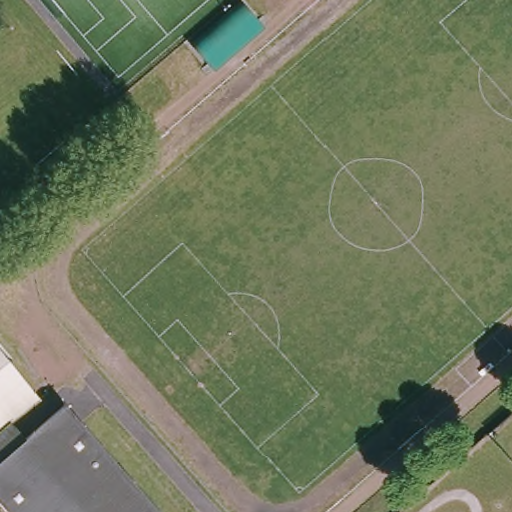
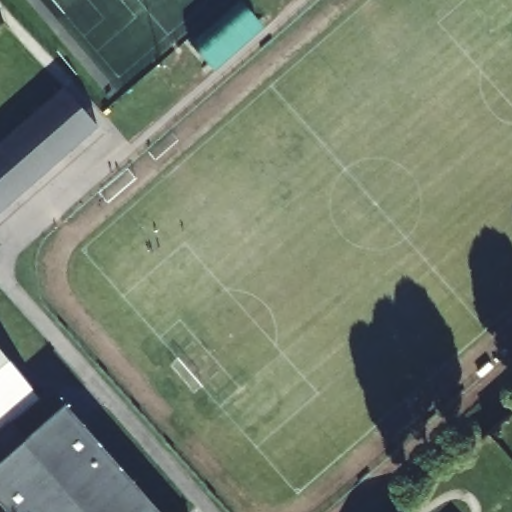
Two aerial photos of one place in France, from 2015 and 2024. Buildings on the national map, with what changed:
unchanged [(260,31),(210,74),(187,47),(237,5),(260,31)]
new [(0,212),(0,143),(64,88),(99,125),(0,212)]
unchanged [(9,425),(0,432),(0,350),(40,400),(9,425)]
unchanged [(66,403),(160,512),(9,512),(0,502),(0,459),(22,441),(66,403)]
unchanged [(0,459),(0,432),(9,425),(22,441),(0,459)]

